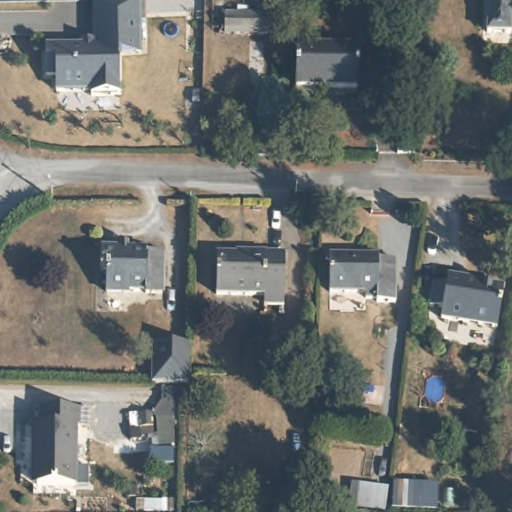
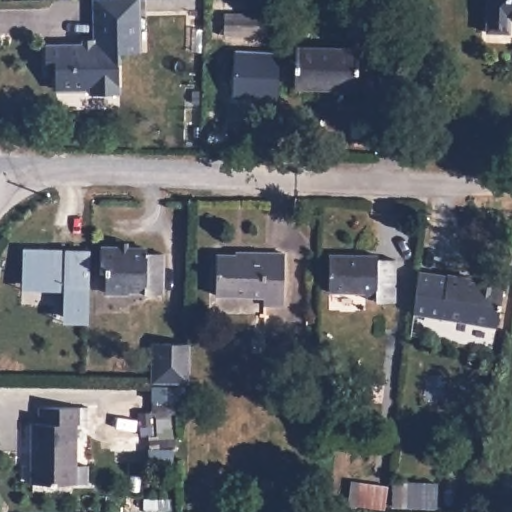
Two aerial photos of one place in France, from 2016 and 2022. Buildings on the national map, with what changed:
unchanged [(140,53),(120,52),(120,94),(94,94),(94,90),(58,89),(56,77),(46,78),(48,43),(82,44),(83,40),(94,39),(94,0),(141,0),(140,53)]
unchanged [(489,34),(490,0),(512,0),(512,35),(489,34)]
unchanged [(385,10),(384,41),(354,40),(356,9),(385,10)]
unchanged [(269,32),(223,32),(223,12),(269,12),(269,32)]
unchanged [(358,43),(359,83),(294,82),(295,42),(358,43)]
unchanged [(147,249),(164,251),(163,290),(145,289),(144,284),(131,283),(128,288),(105,287),(106,266),(100,265),(101,245),(131,247),(130,244),(147,244),(147,249)]
new [(66,292),(25,291),(25,285),(26,249),(94,251),(91,318),(91,324),(65,324),(66,318),(66,292)]
unchanged [(285,250),(284,303),(261,303),(260,296),(214,295),(216,253),(248,254),(249,250),(285,250)]
unchanged [(375,253),(376,257),(394,257),(394,299),(373,299),(373,296),(362,294),(362,289),(327,287),(328,252),(375,253)]
unchanged [(457,269),(457,272),(500,279),(494,319),(438,310),(439,301),(426,299),(429,275),(443,277),(444,267),(457,269)]
unchanged [(155,344),(193,346),(191,386),(154,384),(155,344)]
unchanged [(79,404),(79,422),(76,421),(74,482),(36,481),(36,455),(30,456),(31,420),(39,421),(39,403),(79,404)]
unchanged [(389,485),(386,510),(349,504),(351,479),(389,485)]
unchanged [(439,483),(438,510),(393,507),(394,481),(439,483)]
unchanged [(229,512),(229,503),(244,502),(245,512),(229,512)]

